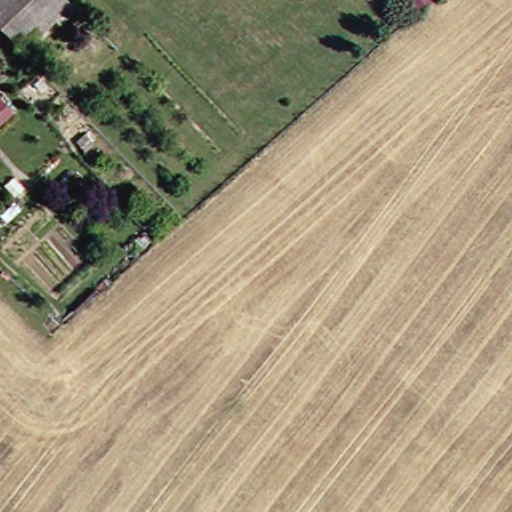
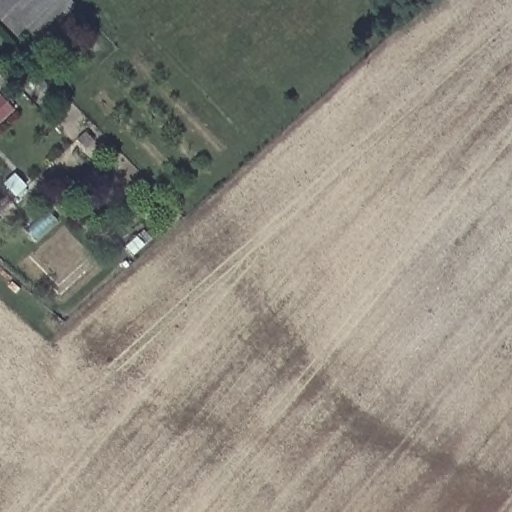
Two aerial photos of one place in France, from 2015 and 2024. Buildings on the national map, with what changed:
unchanged [(70,11),(65,6),(38,30),(27,23),(16,31),(0,16),(0,0),(73,0),(76,3),(70,11)]

